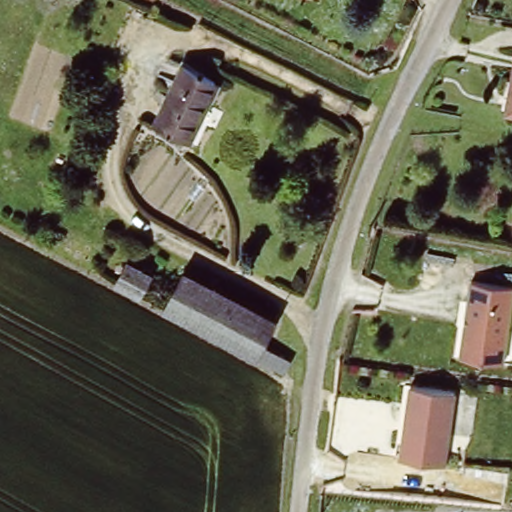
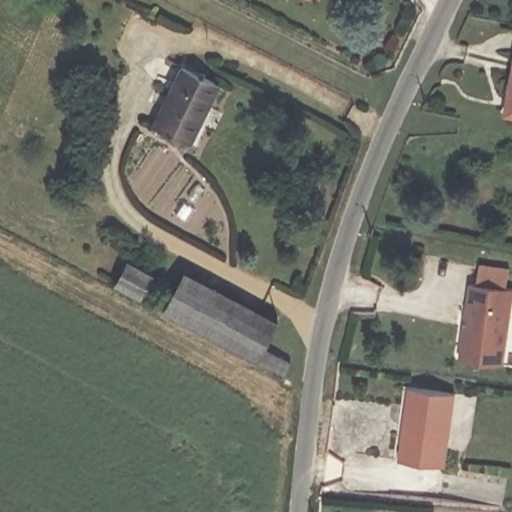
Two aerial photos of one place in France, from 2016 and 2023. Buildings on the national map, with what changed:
unchanged [(190,65),(222,80),(204,118),(210,121),(198,145),(162,126),(190,65)]
unchanged [(512,101),(512,112),(510,112),(512,101)]
unchanged [(120,260),(146,274),(135,293),(108,279),(120,260)]
unchanged [(183,274),(274,322),(262,348),(288,362),(282,374),(163,310),(183,274)]
unchanged [(467,283),(510,289),(500,365),(457,359),(467,283)]
unchanged [(402,417),(407,418),(408,404),(404,404),(406,385),(452,391),(442,464),(398,459),(402,417)]

